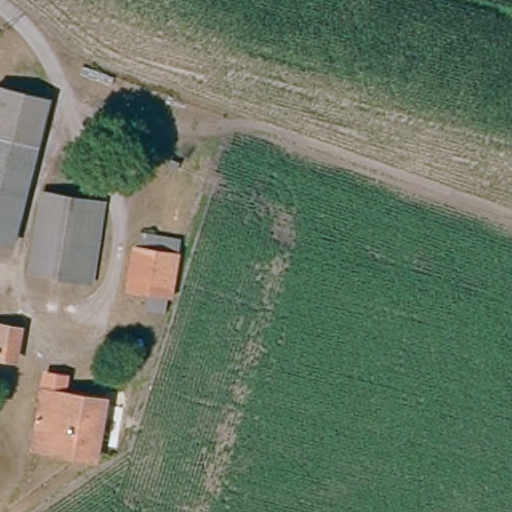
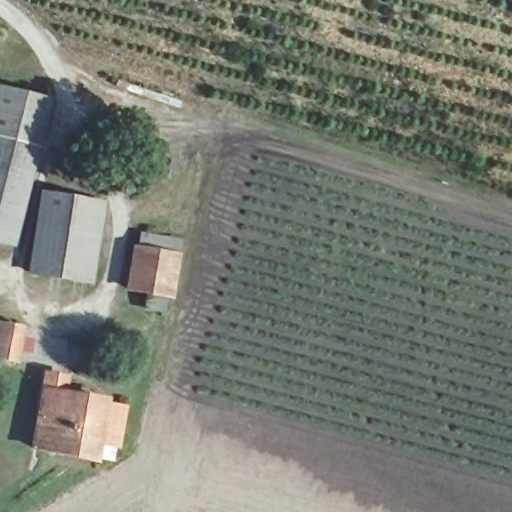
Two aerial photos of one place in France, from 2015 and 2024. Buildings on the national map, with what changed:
unchanged [(46,103),(34,152),(0,142),(0,94),(1,90),(46,103)]
unchanged [(11,247),(0,243),(0,142),(34,152),(11,247)]
unchanged [(73,284),(31,275),(41,214),(45,194),(87,202),(73,284)]
unchanged [(73,284),(87,202),(105,204),(90,287),(73,284)]
unchanged [(141,250),(144,235),(182,243),(171,302),(128,293),(135,254),(141,250)]
unchanged [(13,362),(0,360),(0,329),(20,332),(13,362)]
unchanged [(111,403),(101,461),(36,453),(47,392),(65,395),(111,403)]

